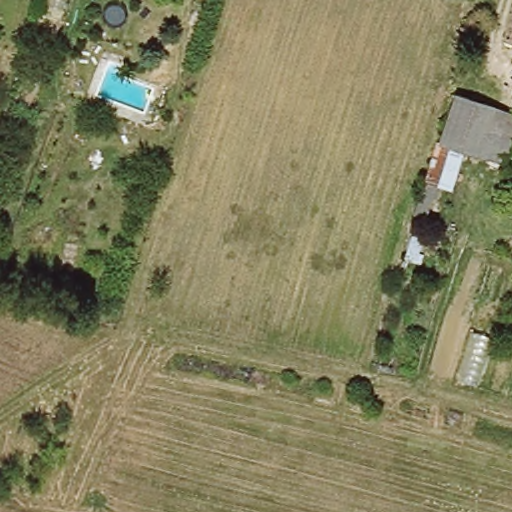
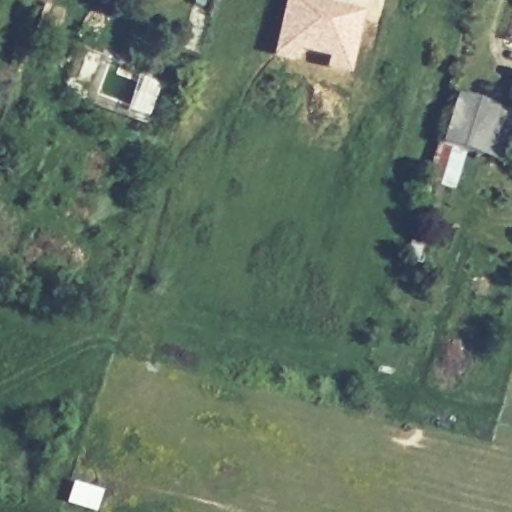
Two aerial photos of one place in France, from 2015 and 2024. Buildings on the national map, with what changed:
new [(318,0),(363,11),(350,75),(323,70),(325,60),(301,55),(300,63),(269,56),(283,0),(318,0)]
unchanged [(60,25),(40,18),(43,6),(64,14),(60,25)]
unchanged [(512,21),(512,39),(507,37),(512,21)]
unchanged [(460,152),(440,145),(455,96),(496,109),(480,159),(460,152)]
unchanged [(496,109),(512,114),(512,149),(506,167),(480,159),(496,109)]
unchanged [(431,155),(436,156),(440,145),(460,152),(451,188),(442,187),(428,225),(411,220),(431,155)]

